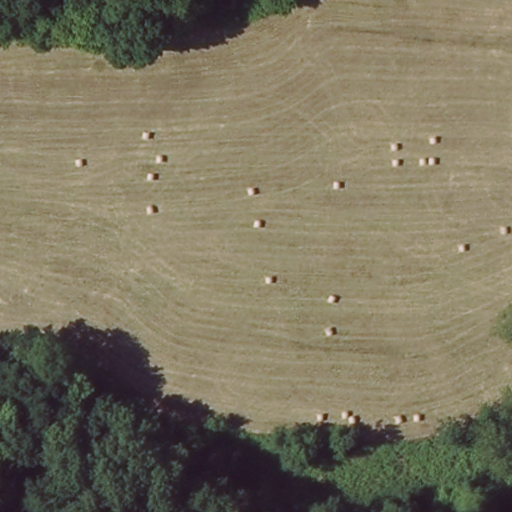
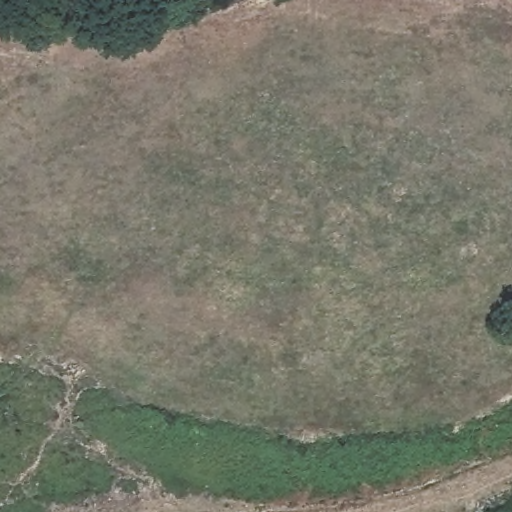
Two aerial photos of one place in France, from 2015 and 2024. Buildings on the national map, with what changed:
[]

